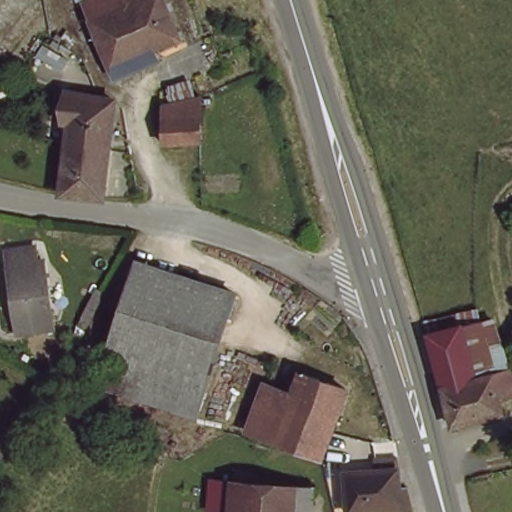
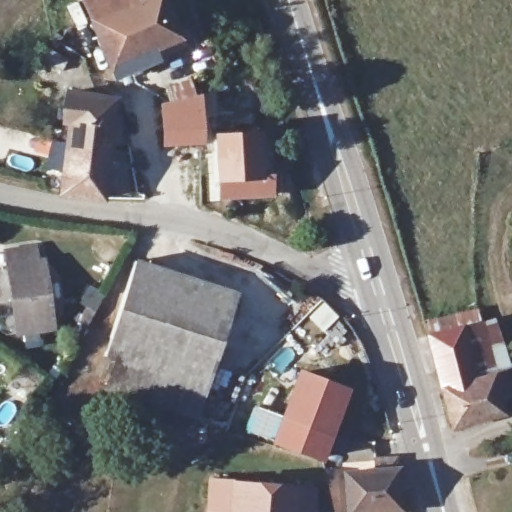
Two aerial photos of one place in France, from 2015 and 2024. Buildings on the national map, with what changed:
unchanged [(177,39),(107,63),(84,0),(166,0),(177,39)]
unchanged [(160,137),(160,92),(158,79),(187,72),(192,89),(196,89),(195,135),(160,137)]
unchanged [(52,143),(55,119),(46,117),(50,88),(84,88),(100,91),(96,152),(95,152),(52,143)]
new [(258,176),(270,175),(270,193),(221,195),(220,177),(216,136),(257,134),(258,176)]
unchanged [(95,152),(96,152),(93,196),(49,190),(47,190),(52,143),(95,152)]
unchanged [(38,257),(51,326),(14,332),(0,251),(0,248),(29,243),(31,258),(38,257)]
unchanged [(240,291),(208,386),(120,357),(107,353),(139,259),(240,291)]
unchanged [(426,330),(494,311),(512,364),(512,395),(501,398),(508,412),(453,429),(426,330)]
unchanged [(208,386),(200,413),(111,385),(120,357),(208,386)]
unchanged [(344,380),(337,406),(330,404),(322,424),(312,449),(275,435),(245,424),(263,378),(291,388),(300,365),(344,380)]
unchanged [(207,509),(212,469),(317,482),(314,512),(221,512),(221,511),(207,509)]
unchanged [(406,487),(410,508),(364,512),(346,512),(344,472),(396,469),(398,488),(406,487)]

